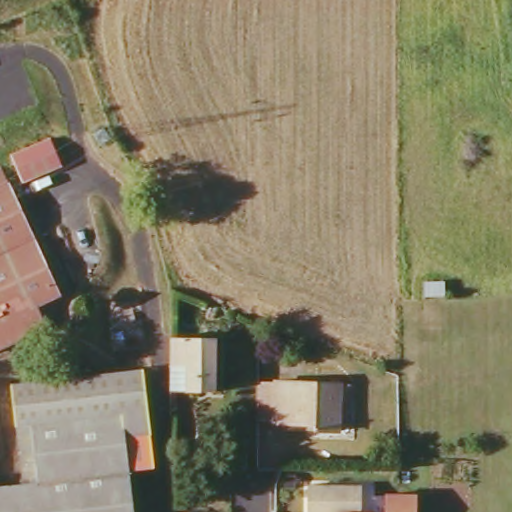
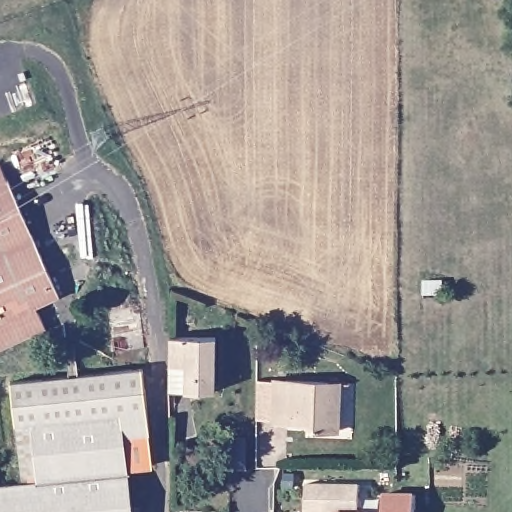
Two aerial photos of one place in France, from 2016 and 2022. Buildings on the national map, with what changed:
unchanged [(7,152),(46,134),(56,152),(57,159),(18,177),(7,152)]
unchanged [(57,295),(35,305),(45,330),(0,348),(0,174),(57,295)]
unchanged [(138,300),(145,352),(110,355),(103,303),(138,300)]
unchanged [(170,338),(215,339),(215,390),(170,390),(170,338)]
unchanged [(20,481),(11,422),(8,380),(140,365),(147,433),(123,438),(132,512),(0,512),(0,485),(20,481)]
unchanged [(337,430),(316,430),(316,423),(273,422),(273,421),(255,421),(255,382),(271,382),(336,382),(337,430)]
unchanged [(228,441),(247,441),(247,470),(228,470),(228,441)]
unchanged [(357,481),(357,512),(306,512),(306,481),(357,481)]
unchanged [(413,498),(413,512),(382,512),(382,498),(413,498)]

